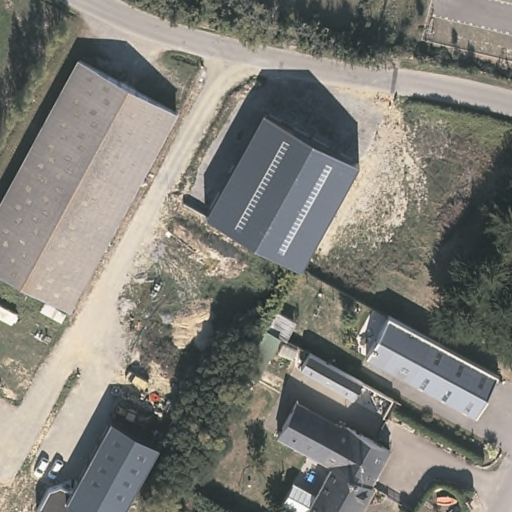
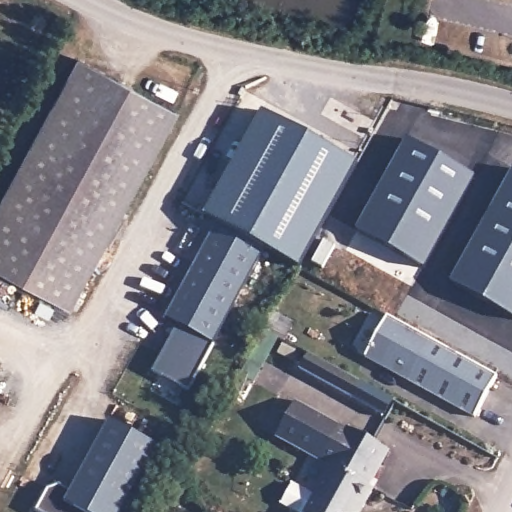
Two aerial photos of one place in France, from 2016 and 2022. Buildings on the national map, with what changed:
unchanged [(72,304),(0,265),(0,206),(83,54),(180,106),(72,304)]
unchanged [(357,163),(301,267),(205,213),(262,112),(357,163)]
new [(356,230),(407,138),(475,177),(423,268),(356,230)]
new [(512,171),(512,317),(451,282),(512,171)]
new [(266,247),(215,345),(190,392),(152,368),(179,326),(165,317),(219,221),(266,247)]
unchanged [(420,387),(363,357),(386,315),(442,346),(420,387)]
unchanged [(497,376),(475,417),(420,387),(442,346),(497,376)]
unchanged [(360,382),(352,397),(300,369),(307,353),(360,382)]
unchanged [(352,424),(354,423),(394,445),(380,472),(377,472),(372,481),(378,484),(368,501),(364,499),(356,512),(314,512),(310,510),(308,512),(286,500),(297,479),(320,491),(335,462),(292,438),(311,402),(352,424)]
unchanged [(39,510),(47,489),(62,486),(71,491),(110,421),(157,446),(120,512),(42,512),(39,510)]

